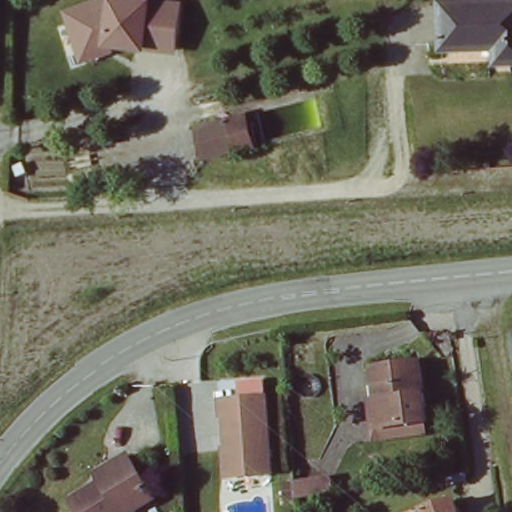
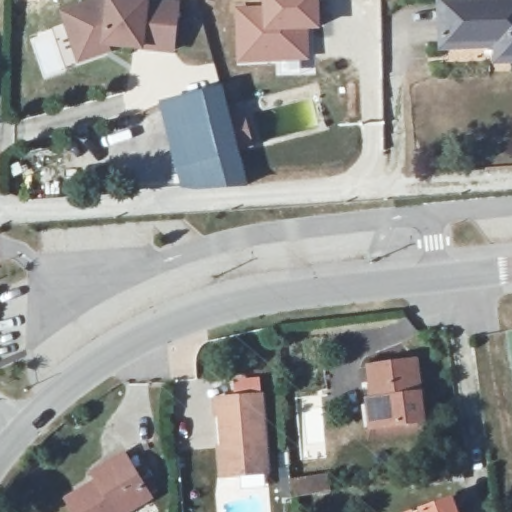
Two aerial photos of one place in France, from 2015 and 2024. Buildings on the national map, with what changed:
unchanged [(177,54),(122,49),(78,64),(59,10),(89,0),(182,0),(177,54)]
new [(262,9),(262,0),(318,0),(319,31),(309,31),(310,64),(237,65),(234,9),(262,9)]
unchanged [(495,45),(440,47),(439,0),(512,0),(512,59),(509,60),(495,60),(495,45)]
new [(224,84),(251,183),(186,184),(169,98),(224,84)]
demolished [(236,125),(244,156),(204,164),(197,134),(236,125)]
unchanged [(363,400),(369,399),(365,367),(418,361),(425,419),(380,425),(367,427),(363,400)]
unchanged [(215,406),(261,403),(266,478),(225,480),(221,425),(215,425),(215,406)]
unchanged [(124,512),(71,512),(66,503),(100,481),(95,473),(110,464),(124,456),(149,497),(124,512)]
unchanged [(413,512),(413,511),(418,510),(457,503),(459,512),(413,512)]

